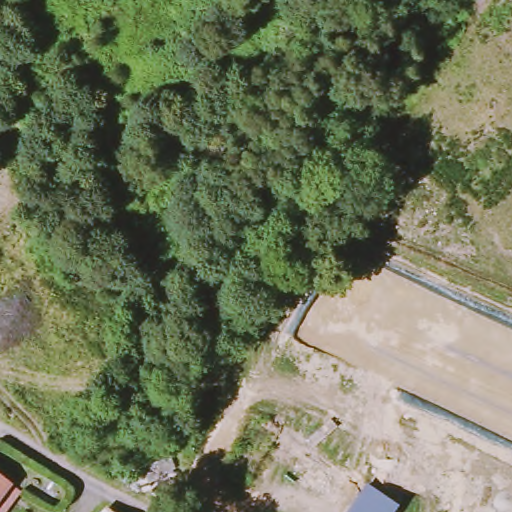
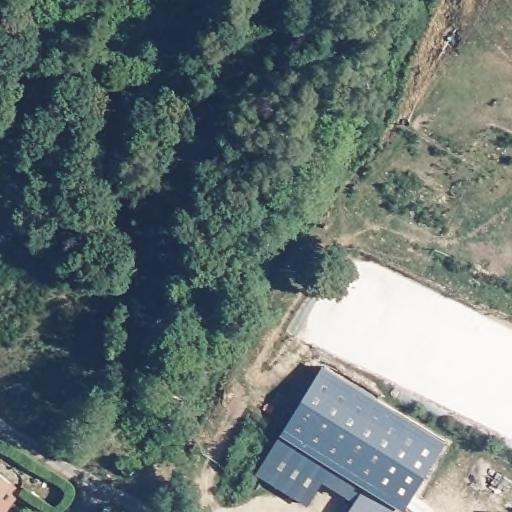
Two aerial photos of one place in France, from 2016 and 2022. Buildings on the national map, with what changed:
new [(404,510),(397,506),(392,512),(348,512),(355,502),(322,481),(308,505),(258,472),(324,366),(446,442),(404,510)]
unchanged [(108,512),(103,512),(105,510),(108,512)]

